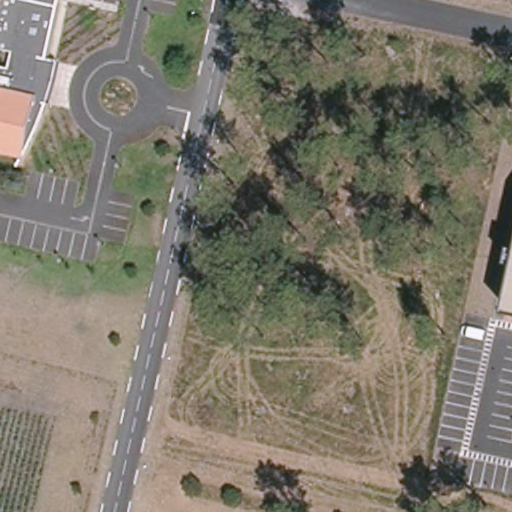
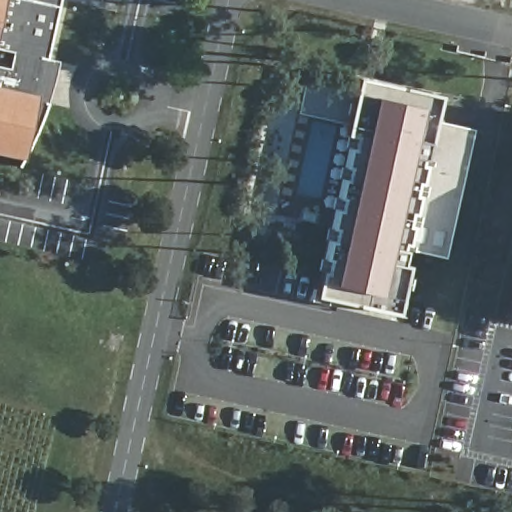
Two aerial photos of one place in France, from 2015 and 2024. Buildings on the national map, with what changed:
unchanged [(49,58),(60,61),(50,98),(25,158),(0,153),(0,0),(62,0),(49,58)]
new [(348,132),(343,131),(356,73),(440,91),(433,119),(433,123),(468,131),(446,227),(409,218),(402,246),(400,261),(407,262),(395,311),(312,293),(348,132)]
new [(308,79),(337,85),(333,108),(303,101),(308,79)]
new [(409,218),(446,227),(468,131),(433,123),(433,119),(473,127),(445,256),(402,246),(409,218)]

